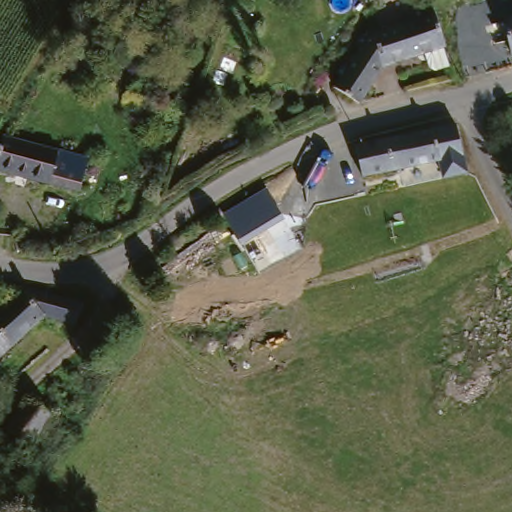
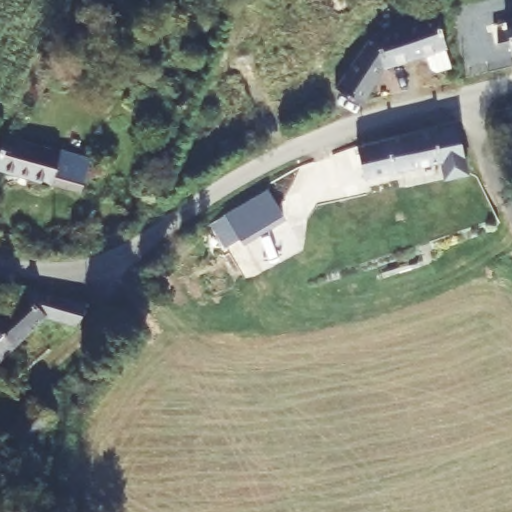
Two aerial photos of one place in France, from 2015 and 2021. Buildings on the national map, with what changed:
unchanged [(377,27),(441,8),(449,44),(455,63),(438,68),(436,66),(430,49),(390,61),(365,97),(341,81),(377,27)]
unchanged [(456,122),(461,150),(437,154),(438,158),(362,174),(355,143),(432,126),(456,122)]
unchanged [(92,152),(84,187),(1,163),(11,129),(92,152)]
unchanged [(242,244),(226,214),(267,189),(285,219),(242,244)]
unchanged [(24,292),(85,308),(79,328),(45,320),(0,362),(0,316),(24,292)]
unchanged [(32,400),(54,417),(32,445),(11,429),(32,400)]

